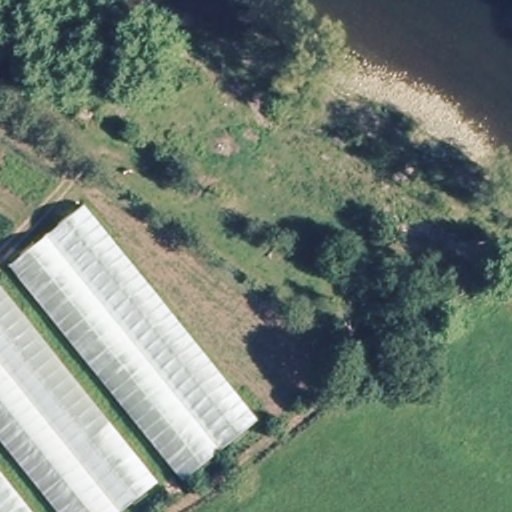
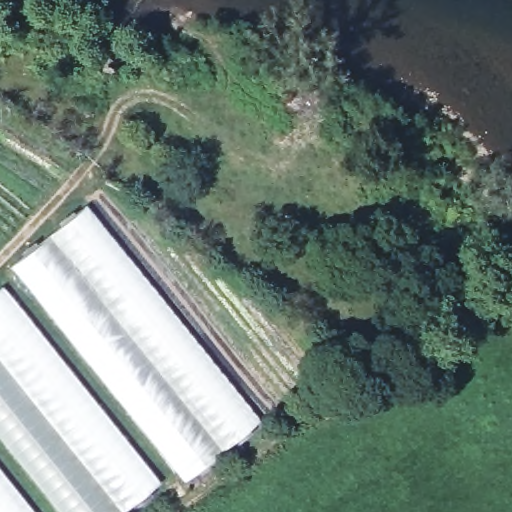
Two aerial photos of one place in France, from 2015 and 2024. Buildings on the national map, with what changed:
unchanged [(84,206),(259,424),(184,483),(10,267),(84,206)]
unchanged [(128,512),(60,512),(0,437),(0,287),(161,487),(128,512)]
unchanged [(0,512),(0,475),(30,512),(0,512)]

